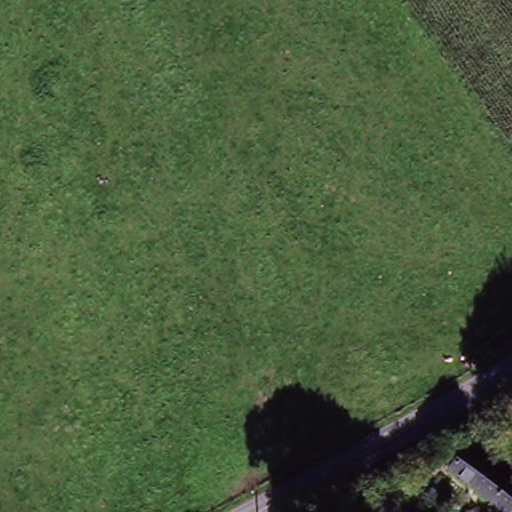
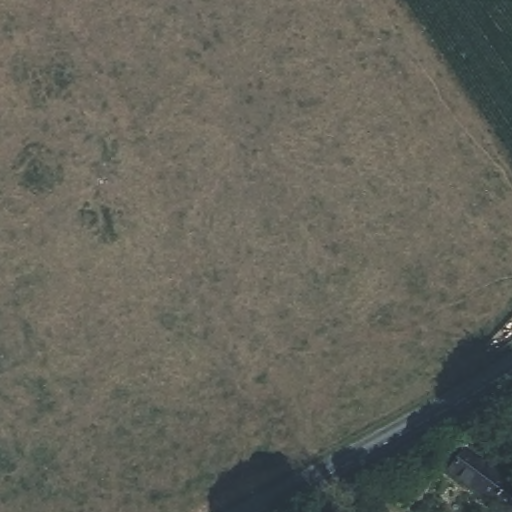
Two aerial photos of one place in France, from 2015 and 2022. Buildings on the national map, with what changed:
unchanged [(512,512),(505,512),(448,467),(465,447),(512,484),(512,512)]
unchanged [(354,512),(337,512),(349,505),(354,512)]

